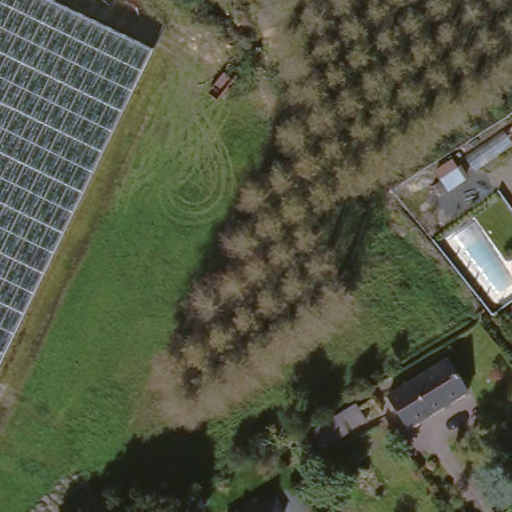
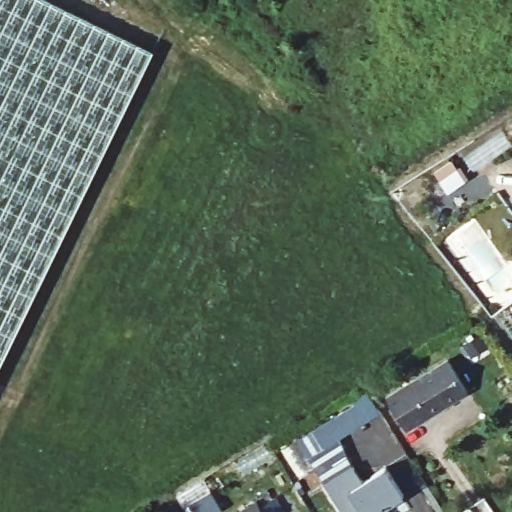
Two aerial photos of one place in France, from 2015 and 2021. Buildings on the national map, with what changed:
unchanged [(152,50),(0,364),(0,0),(48,0),(152,50)]
unchanged [(442,357),(465,386),(408,428),(388,397),(442,357)]
new [(363,481),(386,465),(405,495),(385,507),(388,512),(343,512),(325,482),(308,456),(297,438),(351,404),(349,398),(367,389),(380,411),(339,437),(353,465),(363,481)]
demolished [(369,394),(380,409),(338,443),(325,429),(369,394)]
unchanged [(261,512),(241,512),(254,502),(261,512)]

